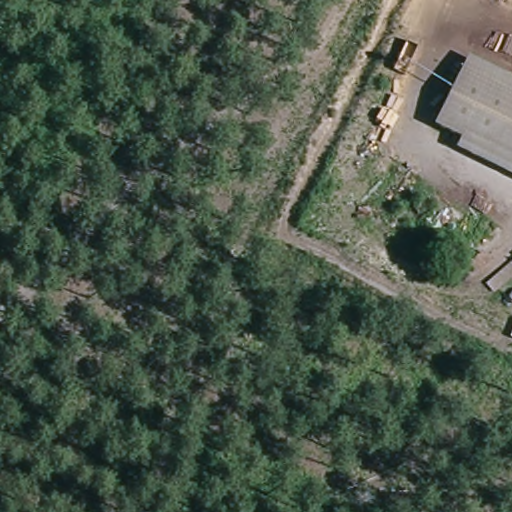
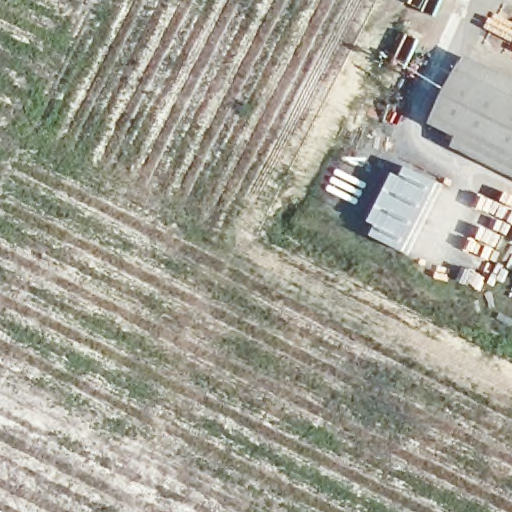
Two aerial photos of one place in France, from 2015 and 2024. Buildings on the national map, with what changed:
unchanged [(512,79),(512,167),(438,130),(469,59),(512,79)]
new [(382,228),(374,224),(398,176),(406,180),(411,169),(444,185),(409,256),(377,239),(382,228)]

